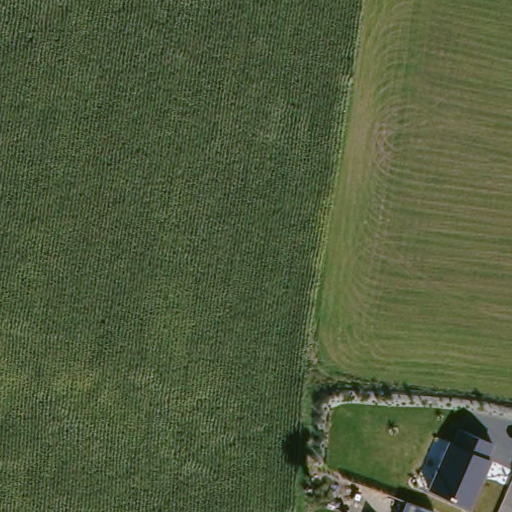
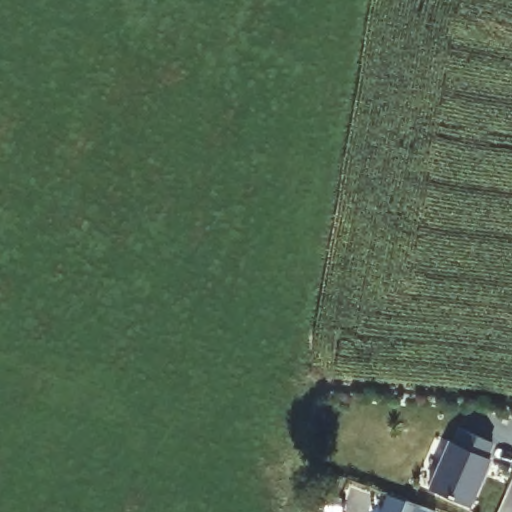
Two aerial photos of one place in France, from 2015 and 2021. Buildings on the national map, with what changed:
unchanged [(450,442),(453,443),(461,429),(493,442),(488,458),(491,460),(470,507),(427,491),(450,442)]
unchanged [(403,492),(432,503),(429,512),(396,512),(403,492)]

